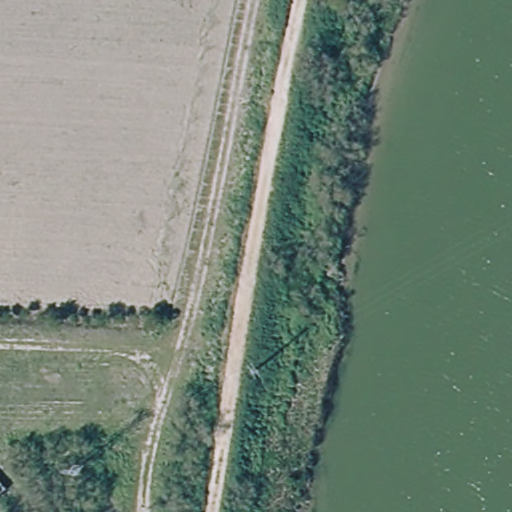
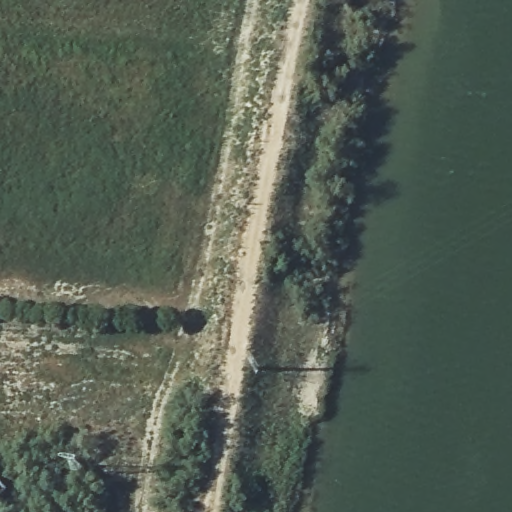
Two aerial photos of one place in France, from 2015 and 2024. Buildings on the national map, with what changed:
unchanged [(0,496),(0,482),(7,490),(0,496)]

